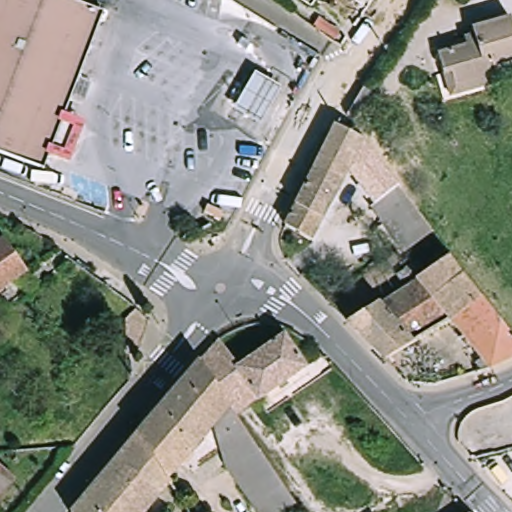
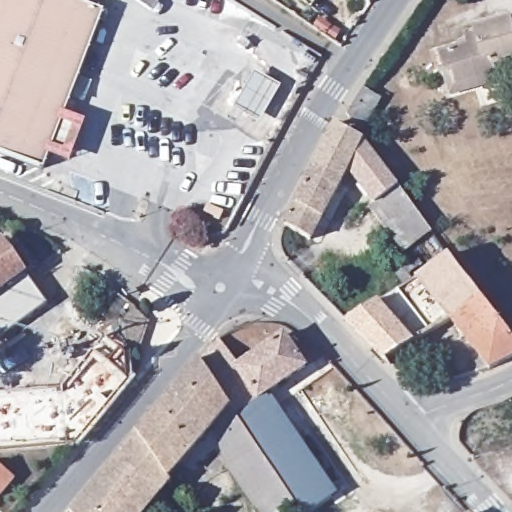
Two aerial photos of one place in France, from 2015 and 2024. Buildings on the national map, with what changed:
unchanged [(79,141),(76,147),(75,154),(54,155),(49,169),(0,150),(0,0),(81,0),(109,11),(70,114),(85,128),(82,133),(79,141)]
unchanged [(449,79),(443,59),(472,51),(469,42),(479,39),(477,34),(512,24),(512,66),(499,70),(501,80),(503,87),(455,101),(449,79)]
unchanged [(263,71),(283,86),(267,121),(241,104),(263,71)]
unchanged [(385,99),(365,132),(351,115),(368,87),(385,99)]
unchanged [(354,164),(315,239),(290,225),(300,205),(340,124),(367,138),(354,164)]
unchanged [(382,201),(354,164),(367,138),(402,185),(382,201)]
unchanged [(402,185),(437,232),(408,254),(374,206),(382,201),(402,185)]
unchanged [(219,221),(214,218),(214,217),(204,212),(207,205),(223,212),(219,221)]
unchanged [(7,246),(29,278),(0,299),(0,250),(7,246)]
unchanged [(437,259),(441,263),(452,256),(466,275),(512,333),(512,359),(495,369),(487,372),(480,362),(486,358),(456,321),(455,320),(440,329),(419,342),(389,360),(351,321),(383,301),(408,285),(401,275),(410,270),(422,262),(429,271),(435,267),(432,262),(437,259)]
unchanged [(243,367),(288,336),(310,367),(263,400),(243,367)]
unchanged [(300,505),(290,512),(263,512),(231,466),(220,423),(173,479),(142,436),(205,361),(223,340),(241,363),(243,367),(263,400),(240,415),(249,428),(300,505)]
new [(300,504),(249,428),(240,415),(263,400),(270,395),(338,493),(311,512),(303,512),(300,504)]
unchanged [(172,481),(173,479),(175,482),(150,512),(77,512),(142,436),(172,481)]
unchanged [(8,470),(25,483),(8,503),(0,497),(0,470),(8,470)]

